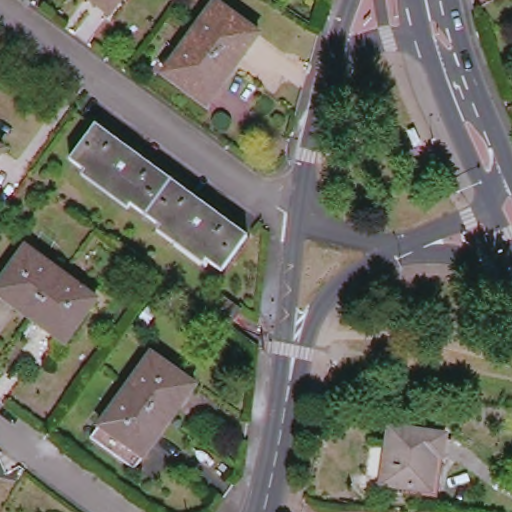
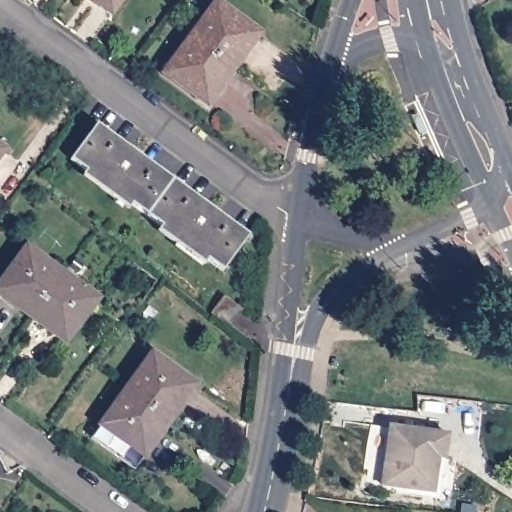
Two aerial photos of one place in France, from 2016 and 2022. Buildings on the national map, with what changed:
unchanged [(110,14),(91,0),(121,0),(110,14)]
unchanged [(216,2),(260,34),(233,69),(190,38),(216,2)]
unchanged [(165,73),(190,38),(233,69),(207,105),(165,73)]
unchanged [(221,271),(70,160),(97,124),(247,236),(221,271)]
unchanged [(9,145),(0,158),(0,139),(9,145)]
unchanged [(0,294),(0,285),(27,248),(62,274),(30,317),(0,294)]
unchanged [(65,342),(30,317),(62,274),(97,300),(65,342)]
unchanged [(212,314),(225,297),(240,309),(227,326),(212,314)]
unchanged [(162,349),(205,380),(180,416),(136,384),(162,349)]
unchanged [(145,464),(101,432),(136,384),(180,416),(145,464)]
unchanged [(392,429),(448,437),(445,459),(438,458),(432,493),(383,485),(390,447),(392,429)]

